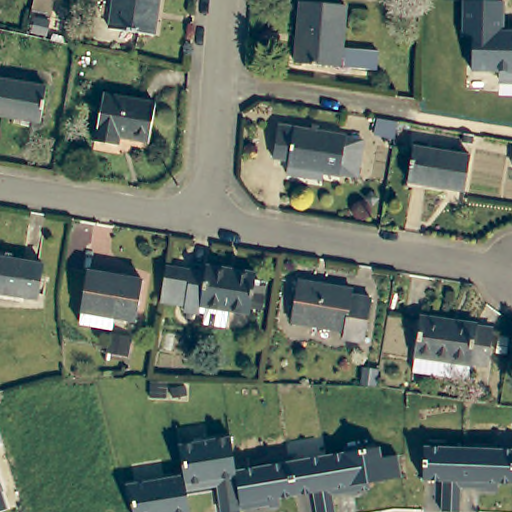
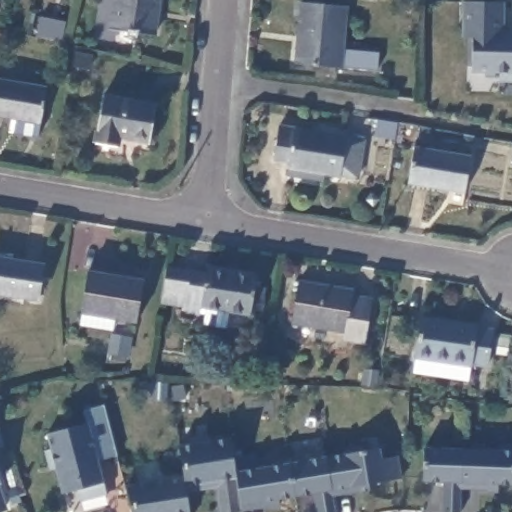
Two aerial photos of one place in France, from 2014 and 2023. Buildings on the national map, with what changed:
unchanged [(115,0),(160,0),(156,36),(111,29),(115,0)]
unchanged [(499,80),(500,72),(472,71),(473,37),(463,37),(463,32),(463,1),(481,1),(496,1),(503,2),(503,32),(512,32),(512,80),(499,80)]
unchanged [(346,11),(343,52),(377,55),(377,74),(297,67),(301,7),(346,11)]
unchanged [(42,121),(0,114),(0,80),(47,87),(42,121)]
unchanged [(157,105),(152,141),(121,136),(119,146),(97,142),(104,96),(157,105)]
unchanged [(376,132),(378,118),(398,122),(396,136),(376,132)]
unchanged [(331,173),(330,176),(278,169),(280,161),(263,158),(270,125),(300,131),(301,123),(307,124),(307,132),(337,137),(356,140),(353,157),(350,177),(331,173)]
unchanged [(466,191),(407,182),(412,147),(414,140),(428,142),(427,150),(471,157),(466,191)]
unchanged [(40,298),(0,291),(0,257),(46,265),(40,298)]
unchanged [(230,310),(227,327),(204,323),(206,312),(186,310),(186,306),(160,302),(166,267),(191,271),(206,273),(207,266),(257,274),(251,313),(230,310)]
unchanged [(137,321),(114,317),(112,329),(80,324),(82,312),(81,311),(87,272),(144,280),(137,321)]
unchanged [(298,282),(353,290),(353,296),(371,298),(365,340),(344,337),(345,330),(292,322),(298,282)]
unchanged [(423,317),(479,325),(478,327),(493,330),(487,365),(472,362),(468,378),(413,371),(423,317)]
new [(115,447),(96,452),(106,493),(80,500),(77,488),(62,492),(56,467),(50,468),(45,449),(51,447),(47,432),(87,422),(84,408),(105,403),(115,447)]
unchanged [(0,444),(0,433),(3,443),(0,444)]
unchanged [(381,447),(383,460),(399,457),(402,478),(368,484),(370,491),(332,497),(335,512),(316,512),(312,494),(280,498),(281,508),(270,511),(270,507),(242,512),(221,512),(217,488),(187,493),(190,512),(134,512),(126,484),(184,476),(180,443),(231,436),(237,470),(381,447)]
unchanged [(498,485),(498,492),(462,490),(460,512),(442,512),(442,482),(421,481),(422,447),(512,450),(512,485),(498,485)]
unchanged [(0,484),(0,477),(2,483),(0,484)]
unchanged [(0,512),(0,486),(9,512),(7,512),(0,512)]

